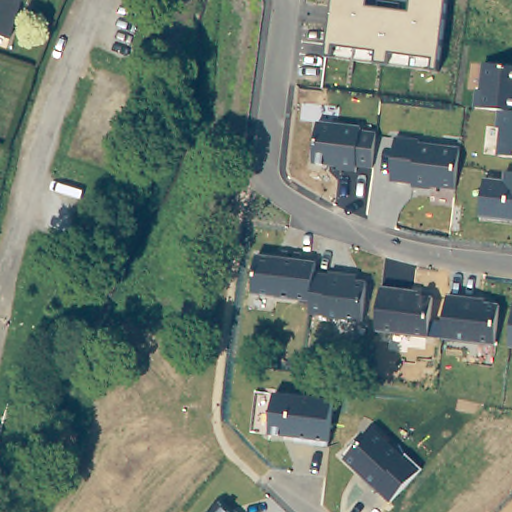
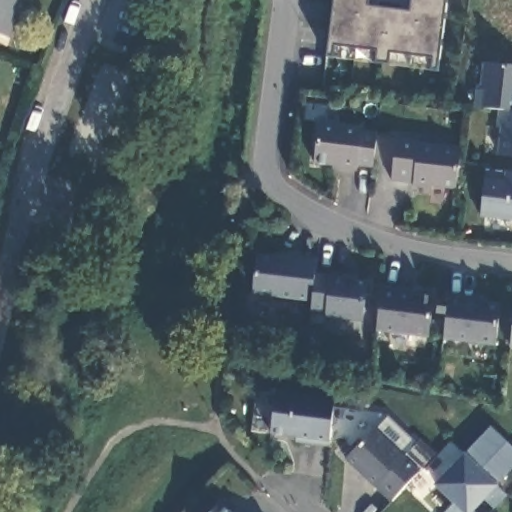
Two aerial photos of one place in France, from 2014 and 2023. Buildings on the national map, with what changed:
unchanged [(10,38),(0,35),(0,0),(23,0),(10,38)]
unchanged [(366,6),(409,12),(411,0),(445,0),(436,70),(430,70),(387,65),(374,64),(331,59),(327,58),(333,0),(367,0),(366,6)]
unchanged [(480,90),(482,63),(512,66),(512,157),(497,155),(500,128),(496,127),(497,109),(475,107),(476,90),(480,90)]
unchanged [(361,126),(360,130),(376,132),(372,168),(354,166),(354,170),(337,170),(337,165),(312,164),(317,121),(361,126)]
unchanged [(421,140),(420,144),(459,149),(453,190),(431,187),(430,190),(410,187),(410,184),(390,181),(396,136),(421,140)]
unchanged [(512,221),(478,217),(482,179),(503,180),(504,171),(512,172),(512,221)]
unchanged [(257,254),(317,261),(316,272),(366,279),(360,318),(309,312),(311,301),(251,295),(257,254)]
unchanged [(420,292),(419,295),(433,297),(429,320),(444,322),(448,295),(486,300),(487,303),(499,305),(494,345),(442,338),(426,336),(376,330),(381,287),(420,292)]
unchanged [(512,320),(512,346),(509,345),(512,320)]
unchanged [(334,400),(328,441),(270,435),(274,393),(334,400)]
new [(435,483),(465,453),(492,426),(512,445),(512,469),(497,485),(507,495),(495,507),(485,497),(474,509),(477,512),(447,512),(455,503),(435,483)]
unchanged [(374,428),(421,471),(389,501),(345,459),(374,428)]
unchanged [(229,512),(211,512),(219,503),(229,512)]

